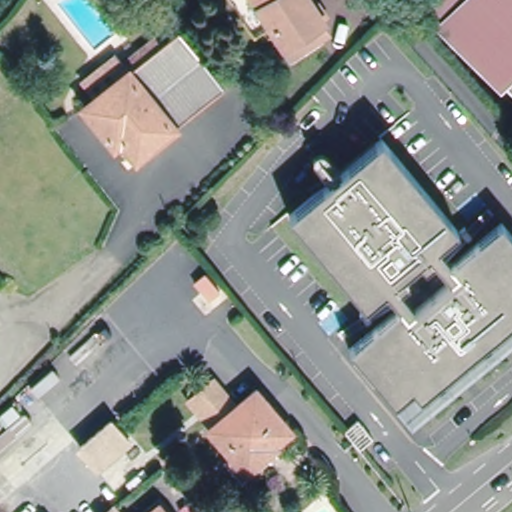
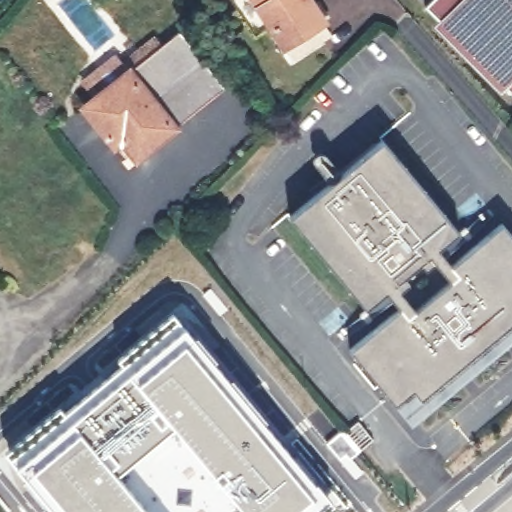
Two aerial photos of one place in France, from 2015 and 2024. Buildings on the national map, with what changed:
unchanged [(308,13),(319,26),(283,54),(245,0),(306,0),(312,9),(308,13)]
unchanged [(512,0),(512,96),(424,3),(427,0),(512,0)]
unchanged [(130,66),(123,58),(151,34),(159,43),(178,28),(225,83),(135,161),(114,136),(111,138),(83,104),(130,66)]
unchanged [(380,140),(458,231),(426,259),(420,252),(393,276),(398,283),(366,310),(288,219),(380,140)]
unchanged [(512,236),(512,323),(421,400),(413,390),(396,406),(349,351),(399,309),(407,317),(458,275),(450,266),(500,222),(512,236)]
new [(58,406),(61,410),(121,361),(117,356),(172,310),(206,346),(223,369),(252,401),(280,439),(333,501),(320,512),(53,512),(35,492),(3,451),(58,406)]
demolished [(261,393),(295,433),(247,472),(214,431),(242,408),(261,393)]
demolished [(72,449),(109,419),(132,447),(94,476),(72,449)]
unchanged [(357,422),(373,441),(360,452),(345,434),(357,422)]
demolished [(251,512),(228,512),(241,501),(251,512)]
demolished [(113,502),(122,512),(101,512),(113,502)]
demolished [(159,509),(162,512),(156,512),(159,509)]

